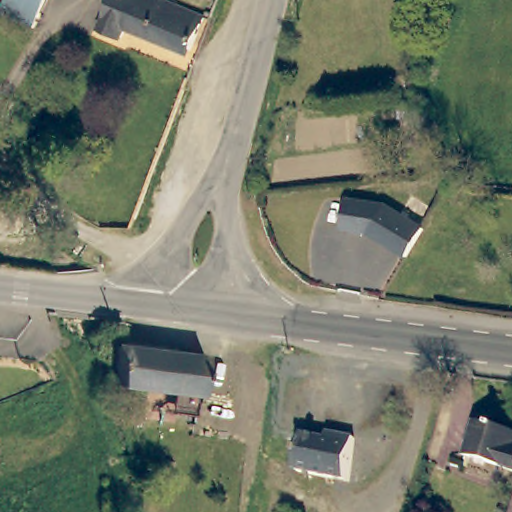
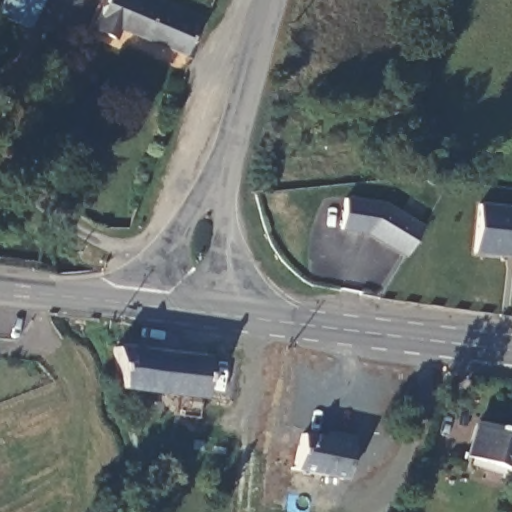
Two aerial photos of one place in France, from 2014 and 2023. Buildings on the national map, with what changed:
unchanged [(45,0),(29,31),(0,21),(0,10),(4,0),(45,0)]
unchanged [(185,54),(121,26),(116,36),(98,28),(110,0),(153,0),(200,20),(185,54)]
unchanged [(390,76),(424,72),(429,124),(398,125),(390,76)]
unchanged [(408,254),(369,232),(343,228),(347,198),(386,203),(424,226),(408,254)]
new [(473,254),(477,202),(512,206),(512,258),(473,254)]
unchanged [(203,359),(201,372),(198,399),(145,392),(118,389),(111,349),(203,359)]
unchanged [(503,474),(500,483),(461,472),(475,427),(512,438),(512,477),(503,474)]
unchanged [(331,441),(332,434),(351,437),(342,480),(292,469),(299,434),(331,441)]
unchanged [(512,508),(512,512),(511,512),(512,508)]

